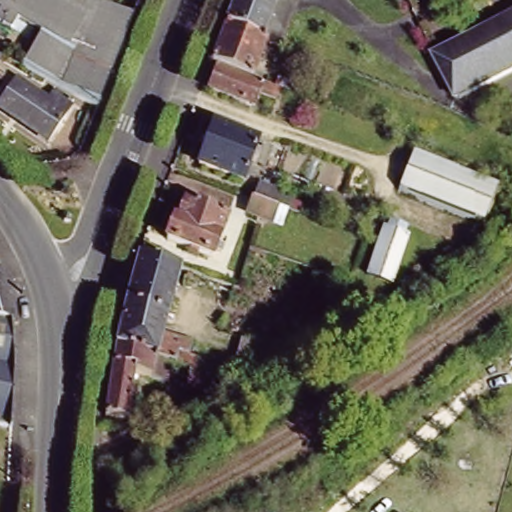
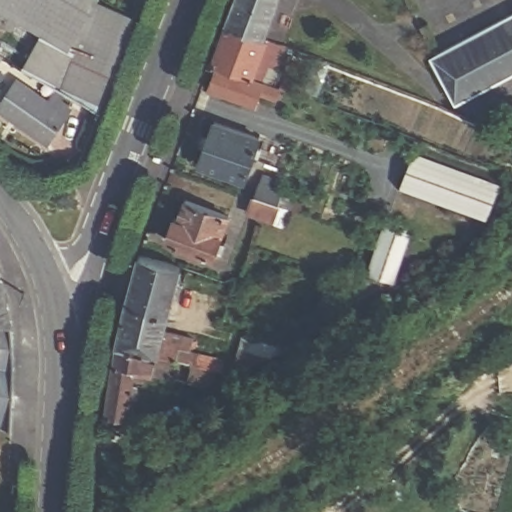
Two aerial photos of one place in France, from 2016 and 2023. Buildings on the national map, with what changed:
unchanged [(132,29),(129,36),(122,51),(112,80),(106,94),(105,98),(102,107),(27,65),(46,31),(24,18),(17,28),(0,18),(7,8),(0,4),(0,0),(100,0),(130,11),(137,15),(132,29)]
unchanged [(237,0),(282,0),(270,33),(230,18),(237,0)]
unchanged [(440,52),(512,14),(512,68),(460,95),(440,52)]
unchanged [(217,55),(230,18),(270,33),(274,34),(259,71),(217,55)]
unchanged [(0,53),(2,54),(0,58),(0,53)]
unchanged [(284,84),(280,92),(265,86),(260,99),(215,81),(222,61),(284,84)]
unchanged [(280,80),(283,70),(299,76),(295,86),(280,80)]
unchanged [(54,98),(59,90),(77,103),(52,141),(2,108),(22,77),(54,98)]
unchanged [(262,134),(247,176),(202,160),(218,118),(262,134)]
unchanged [(505,183),(490,219),(405,186),(420,150),(505,183)]
unchanged [(245,213),(252,197),(254,197),(260,181),(285,191),(278,206),(272,223),(245,213)]
unchanged [(219,257),(170,239),(178,217),(182,218),(189,199),(234,216),(219,257)]
unchanged [(399,277),(374,268),(390,220),(415,229),(399,277)]
unchanged [(175,307),(131,295),(145,248),(187,261),(175,307)]
unchanged [(0,269),(4,268),(17,317),(0,313),(0,269)]
unchanged [(119,356),(122,340),(131,295),(175,307),(168,332),(184,336),(182,342),(230,354),(229,358),(234,360),(232,364),(227,363),(226,367),(225,373),(219,371),(216,380),(214,380),(197,376),(200,360),(179,354),(175,370),(141,362),(132,412),(112,408),(119,356)]
unchanged [(0,422),(0,421),(0,313),(17,317),(19,370),(19,373),(15,423),(5,424),(0,422)]
unchanged [(300,343),(241,369),(252,329),(300,343)]
unchanged [(284,356),(293,352),(297,362),(279,371),(274,360),(284,356)]

